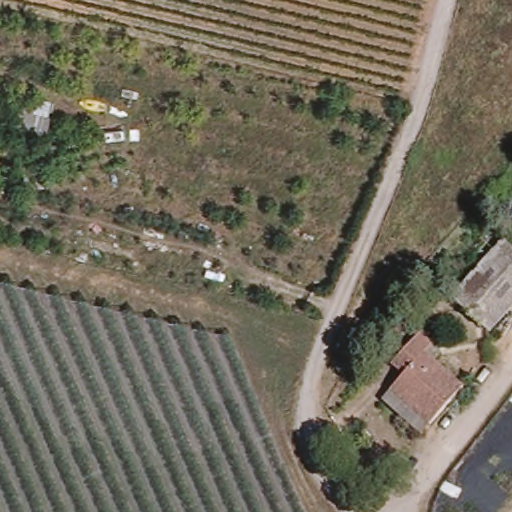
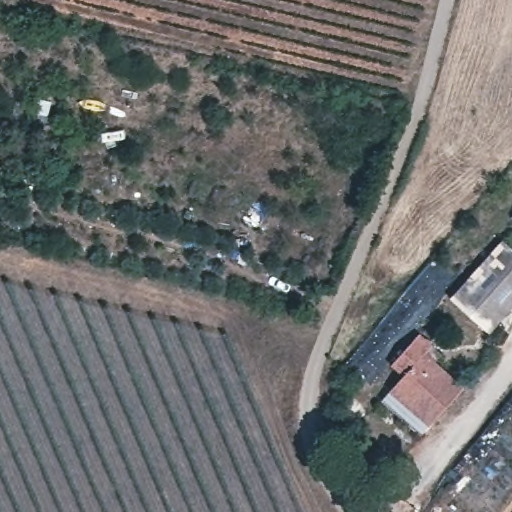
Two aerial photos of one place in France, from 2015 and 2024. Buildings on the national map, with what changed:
unchanged [(505,242),(512,249),(512,312),(492,335),(455,298),(505,242)]
unchanged [(385,402),(395,395),(410,378),(395,365),(424,335),(447,355),(439,361),(467,387),(432,427),(424,435),(385,402)]

